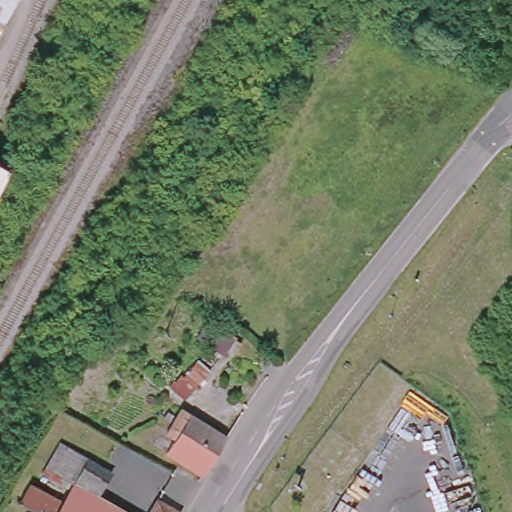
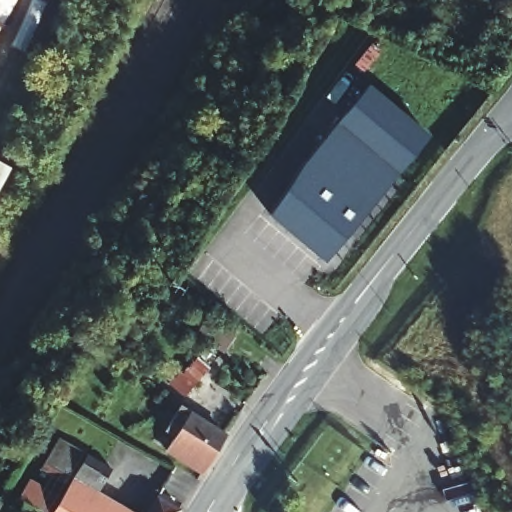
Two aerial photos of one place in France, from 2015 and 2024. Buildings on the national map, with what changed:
unchanged [(0,36),(0,0),(20,0),(0,36)]
new [(432,134),(325,260),(267,215),(367,77),(432,134)]
unchanged [(12,166),(13,167),(0,191),(0,160),(12,166)]
unchanged [(235,336),(223,352),(197,332),(208,314),(235,336)]
new [(184,396),(160,376),(183,348),(207,368),(184,396)]
unchanged [(200,472),(162,449),(173,431),(162,425),(176,403),(225,434),(200,472)]
unchanged [(69,479),(50,468),(60,453),(52,448),(59,438),(107,468),(95,493),(84,512),(46,512),(16,493),(30,474),(60,494),(69,479)]
unchanged [(84,512),(95,493),(125,512),(84,512)]
unchanged [(177,511),(176,512),(145,512),(154,497),(177,511)]

